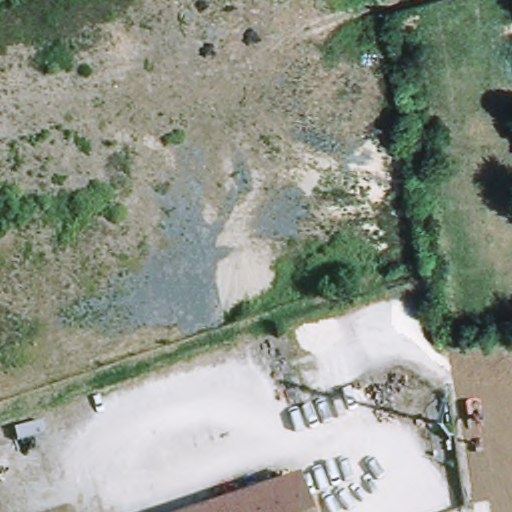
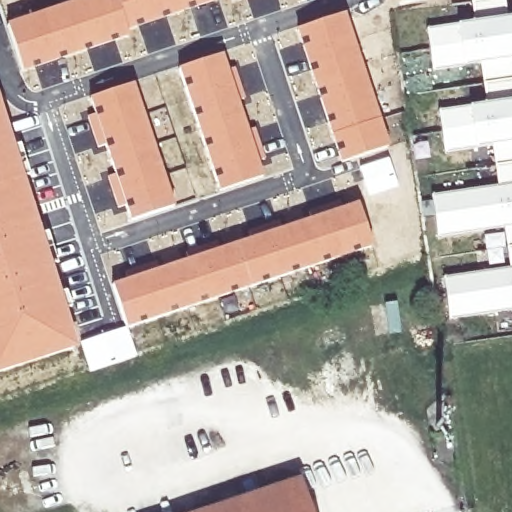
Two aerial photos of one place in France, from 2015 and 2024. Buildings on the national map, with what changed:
new [(74,0),(115,0),(128,33),(129,36),(76,56),(23,72),(6,23),(74,0)]
new [(157,22),(128,33),(115,0),(222,0),(157,22)]
new [(233,2),(232,0),(238,0),(233,2)]
new [(345,12),(388,146),(340,162),(295,29),(345,12)]
new [(512,18),(512,56),(464,65),(433,70),(427,31),(458,26),(512,18)]
new [(125,207),(117,210),(107,179),(114,176),(105,146),(97,150),(87,119),(95,116),(90,102),(131,87),(173,210),(131,224),(125,207)]
new [(446,152),(440,112),(469,108),(512,102),(512,141),(477,147),(446,152)]
new [(74,348),(0,370),(0,125),(4,124),(74,348)]
new [(388,157),(398,186),(367,196),(358,167),(388,157)]
new [(437,237),(431,196),(512,184),(512,226),(437,237)]
new [(249,288),(235,247),(250,242),(247,234),(265,227),(268,236),(311,222),(307,214),(337,204),(340,212),(357,206),(370,246),(249,288)]
new [(235,247),(249,288),(126,329),(112,287),(235,247)]
new [(449,319),(443,277),(512,268),(512,309),(449,319)]
unchanged [(218,512),(292,487),(293,490),(320,481),(330,512),(218,512)]

